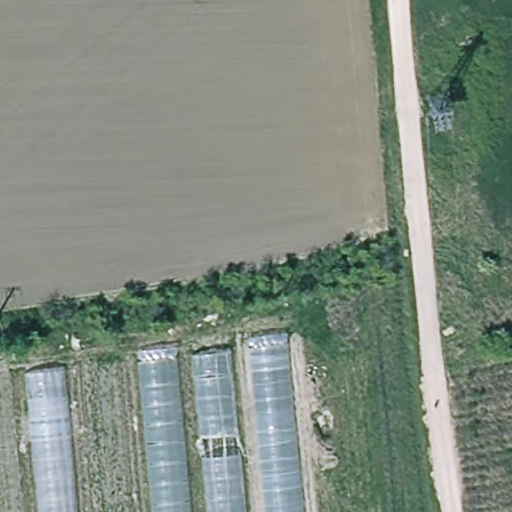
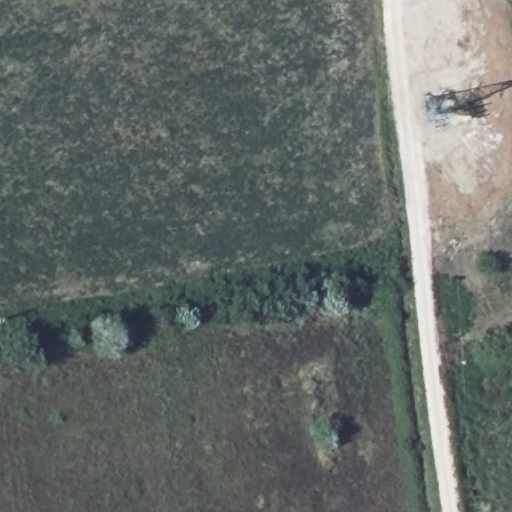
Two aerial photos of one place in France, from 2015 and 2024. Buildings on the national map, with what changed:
demolished [(24,371),(22,361),(175,345),(175,353),(287,341),(302,512),(0,512),(0,374),(24,371)]

